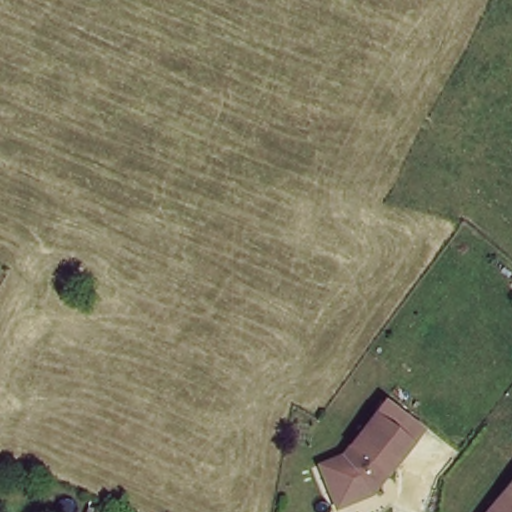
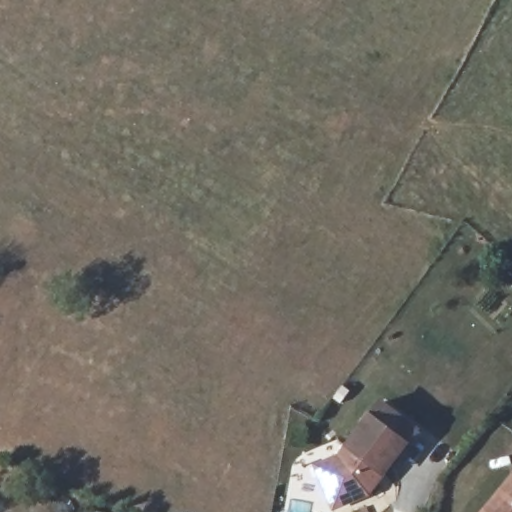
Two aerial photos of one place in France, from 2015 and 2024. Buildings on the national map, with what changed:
unchanged [(334,495),(322,463),(345,454),(376,414),(412,443),(372,492),(338,505),(334,495)]
unchanged [(512,485),(512,512),(488,512),(512,485)]
unchanged [(83,509),(93,512),(81,512),(83,509)]

